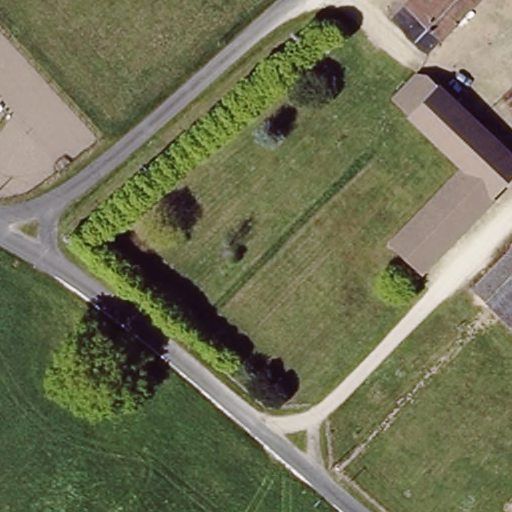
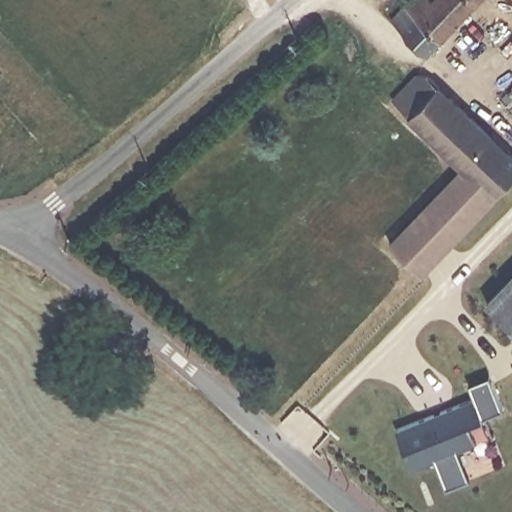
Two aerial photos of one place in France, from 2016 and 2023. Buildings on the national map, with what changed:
unchanged [(475,0),(437,36),(433,32),(426,40),(416,30),(394,5),(399,0),(475,0)]
unchanged [(409,115),(394,99),(424,70),(441,88),(476,126),(448,156),(409,115)]
demolished [(498,115),(483,98),(512,70),(512,85),(498,100),(505,107),(498,115)]
unchanged [(512,88),(512,108),(502,97),(512,88)]
unchanged [(512,182),(493,201),(466,174),(448,156),(476,126),(512,165),(512,182)]
unchanged [(493,201),(416,275),(389,245),(466,174),(493,201)]
unchanged [(512,275),(512,329),(485,302),(512,275)]
new [(485,417),(469,424),(477,443),(458,450),(468,479),(446,488),(434,460),(412,469),(398,430),(476,401),(470,385),(491,378),(503,410),(485,417)]

